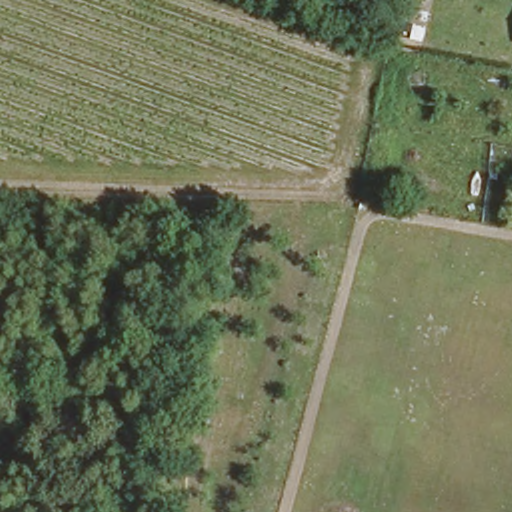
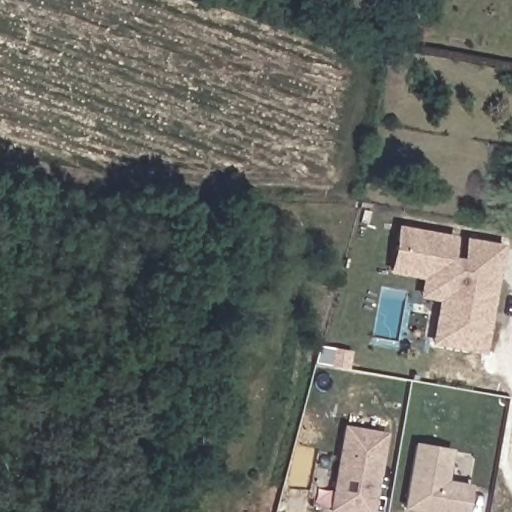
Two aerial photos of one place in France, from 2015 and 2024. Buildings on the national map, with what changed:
new [(431,327),(440,280),(435,304),(430,303),(416,301),(420,282),(386,277),(391,253),(394,235),(447,245),(443,267),(457,270),(461,247),(495,253),(490,282),(480,335),(476,355),(433,348),(428,347),(431,327)]
new [(330,354),(346,357),(343,373),(327,371),(330,354)]
new [(338,431),(378,438),(365,512),(323,512),(338,431)]
new [(445,455),(439,486),(463,490),(459,512),(398,512),(409,449),(445,455)]

